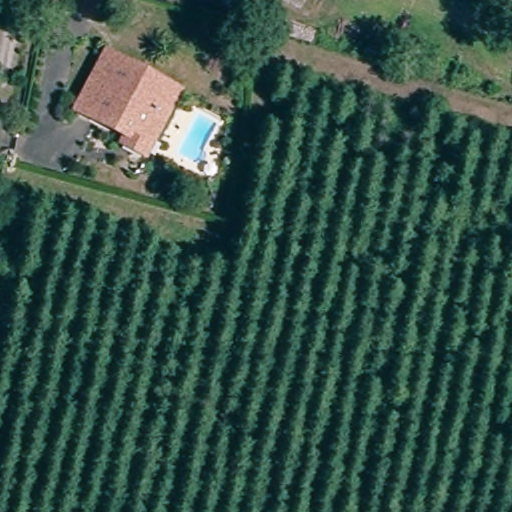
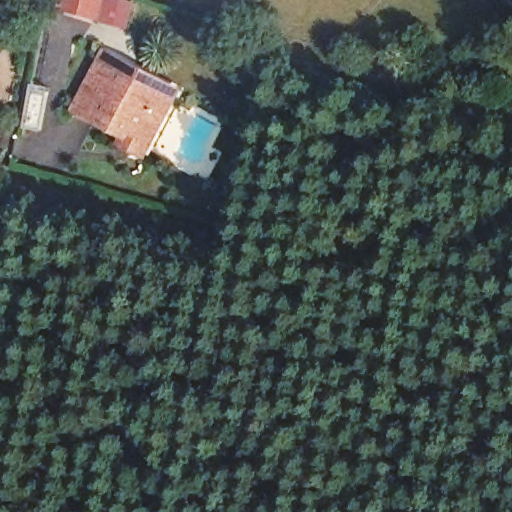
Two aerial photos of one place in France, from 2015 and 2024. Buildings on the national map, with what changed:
new [(85,14),(81,13),(82,9),(71,6),(73,0),(128,0),(132,1),(127,16),(117,14),(114,25),(95,20),(84,18),(85,14)]
unchanged [(124,136),(74,106),(89,80),(106,49),(120,57),(134,64),(180,90),(174,101),(150,140),(140,156),(118,145),(124,136)]

